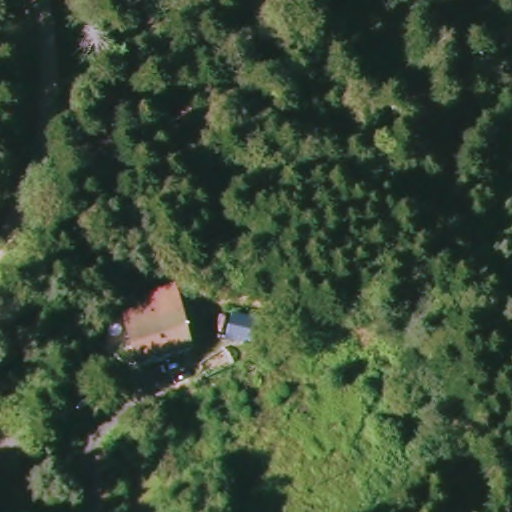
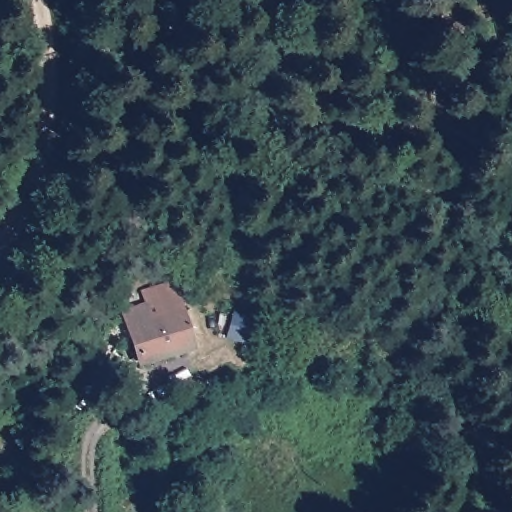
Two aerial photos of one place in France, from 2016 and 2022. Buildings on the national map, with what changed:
unchanged [(132,365),(120,311),(142,305),(141,295),(174,284),(190,350),(132,365)]
unchanged [(232,314),(266,321),(258,349),(225,340),(232,314)]

